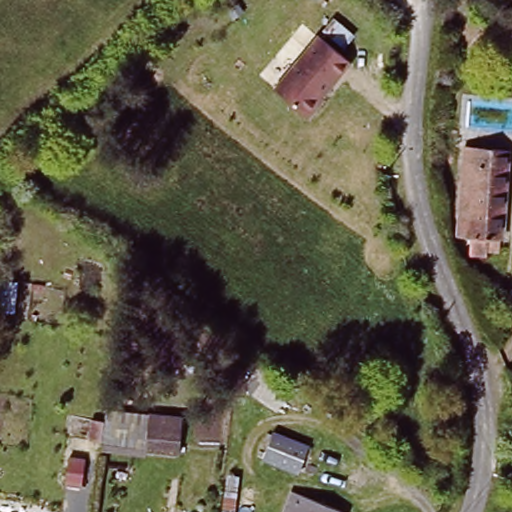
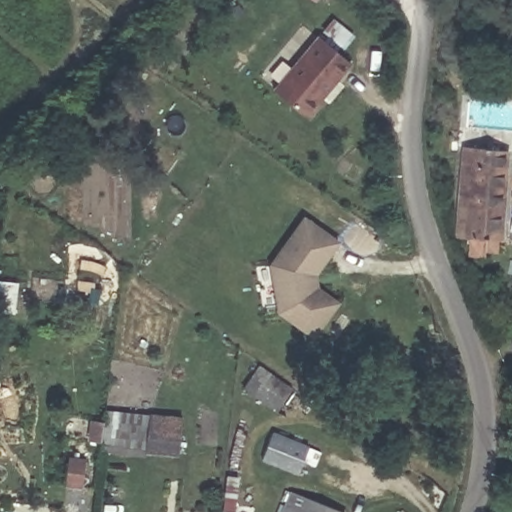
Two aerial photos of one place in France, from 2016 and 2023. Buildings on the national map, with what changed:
unchanged [(351,64),(306,115),(276,87),(316,39),(351,64)]
unchanged [(512,148),(512,160),(508,247),(496,247),(495,254),(477,253),(478,236),(467,235),(472,146),(512,148)]
new [(319,275),(321,287),(343,302),(317,338),(280,313),(271,264),(307,215),(345,241),(319,275)]
unchanged [(17,311),(0,310),(0,278),(18,281),(17,311)]
unchanged [(295,387),(279,406),(243,382),(257,361),(295,387)]
unchanged [(145,413),(143,448),(68,436),(69,416),(103,420),(105,407),(145,413)]
unchanged [(180,415),(178,453),(143,448),(145,413),(180,415)]
unchanged [(308,452),(298,477),(265,463),(275,438),(308,452)]
unchanged [(136,449),(135,460),(117,458),(119,446),(136,449)]
unchanged [(340,512),(281,512),(291,490),(340,512)]

